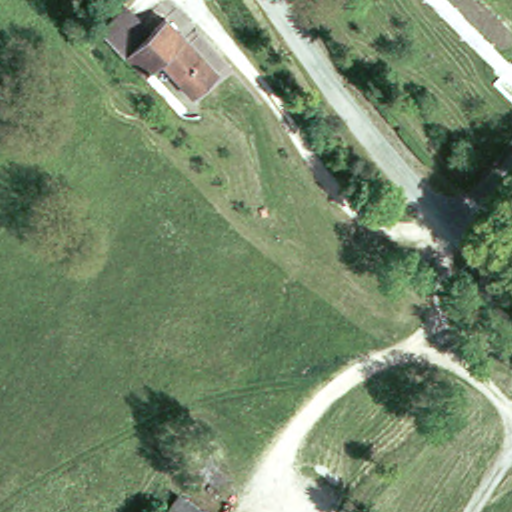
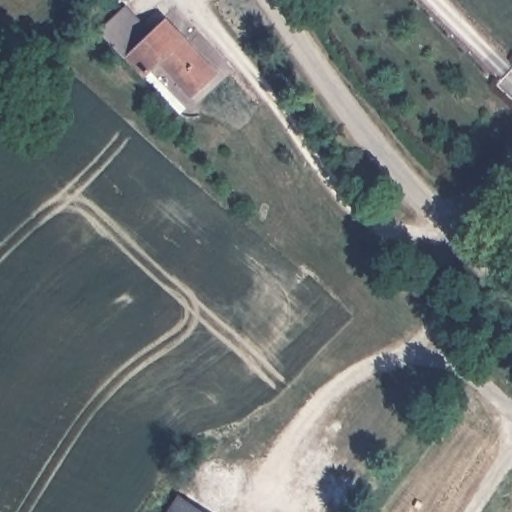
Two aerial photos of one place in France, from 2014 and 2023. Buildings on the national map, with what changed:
unchanged [(200,100),(170,65),(154,80),(132,58),(130,60),(105,32),(136,6),(160,35),(176,20),(227,76),(200,100)]
unchanged [(204,512),(170,512),(180,496),(204,512)]

